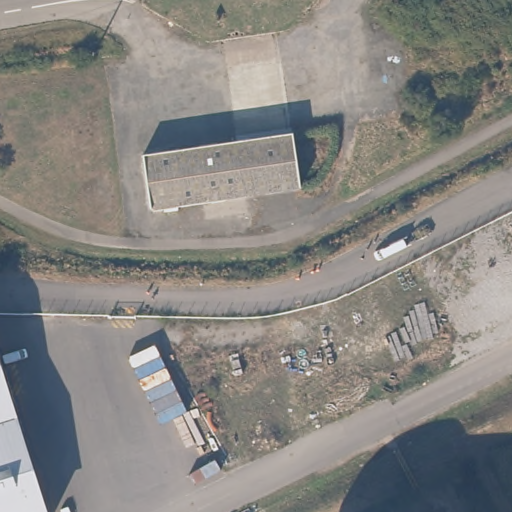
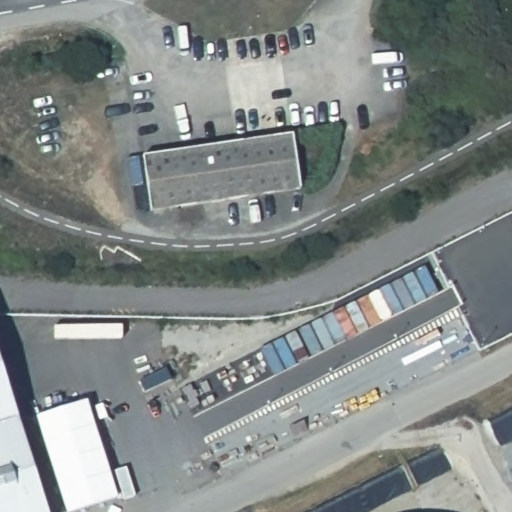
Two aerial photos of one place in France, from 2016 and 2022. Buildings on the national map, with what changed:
unchanged [(294,135),(303,189),(153,212),(144,157),(294,135)]
unchanged [(0,512),(0,356),(50,512),(0,512)]
new [(66,512),(36,415),(88,400),(118,497),(66,512)]

